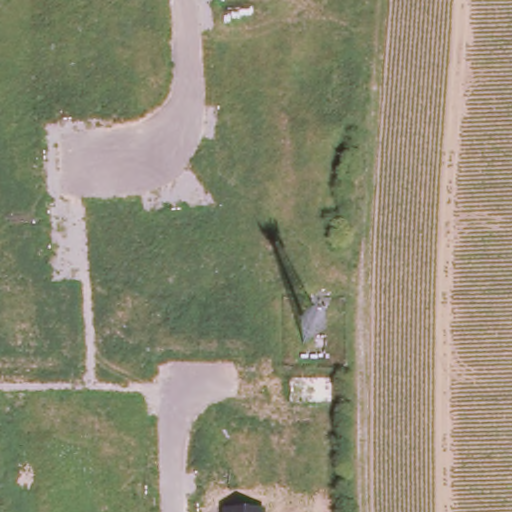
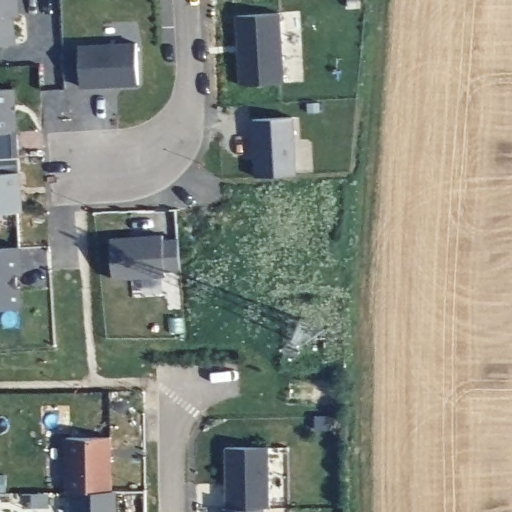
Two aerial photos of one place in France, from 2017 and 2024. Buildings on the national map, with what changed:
new [(0,45),(0,0),(10,0),(13,44),(0,45)]
new [(278,12),(282,83),(240,85),(235,15),(278,12)]
new [(134,45),(136,85),(80,87),(77,46),(134,45)]
new [(17,132),(0,133),(0,90),(14,89),(17,132)]
new [(292,116),(295,175),(255,177),(252,119),(292,116)]
new [(22,212),(0,213),(0,157),(18,156),(22,212)]
new [(162,234),(162,239),(178,239),(180,268),(164,269),(165,274),(113,278),(111,238),(162,234)]
new [(21,273),(15,273),(17,287),(20,286),(20,306),(0,307),(0,248),(20,247),(21,273)]
new [(114,442),(115,496),(77,496),(72,495),(71,442),(114,442)]
new [(227,450),(268,449),(270,509),(265,508),(230,510),(227,450)]
new [(115,496),(120,495),(120,512),(77,512),(77,496),(115,496)]
unchanged [(223,510),(230,510),(265,508),(265,512),(223,512),(223,510)]

